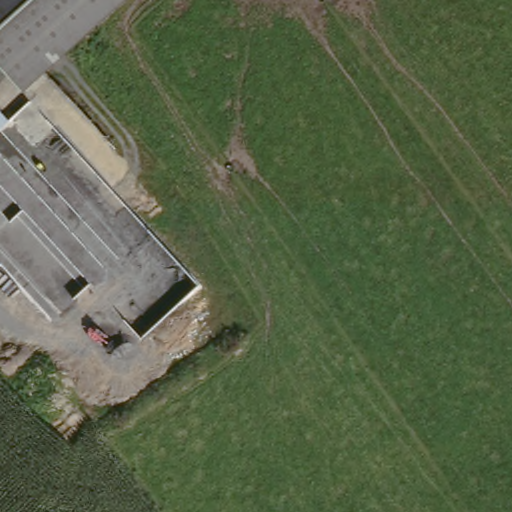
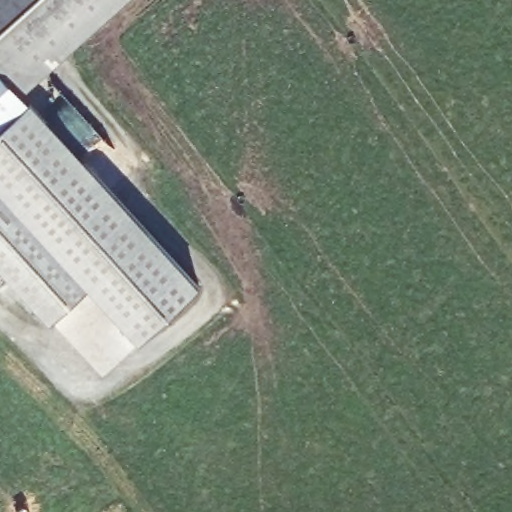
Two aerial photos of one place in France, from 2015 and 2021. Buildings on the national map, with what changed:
unchanged [(25,94),(7,76),(0,83),(0,0),(129,0),(25,94)]
new [(139,343),(88,287),(50,323),(0,270),(0,239),(62,187),(0,114),(0,83),(7,76),(25,94),(201,285),(139,343)]
unchanged [(0,239),(0,114),(62,187),(0,239)]

